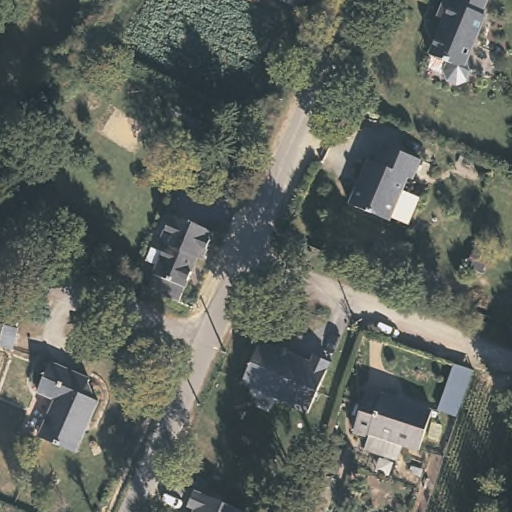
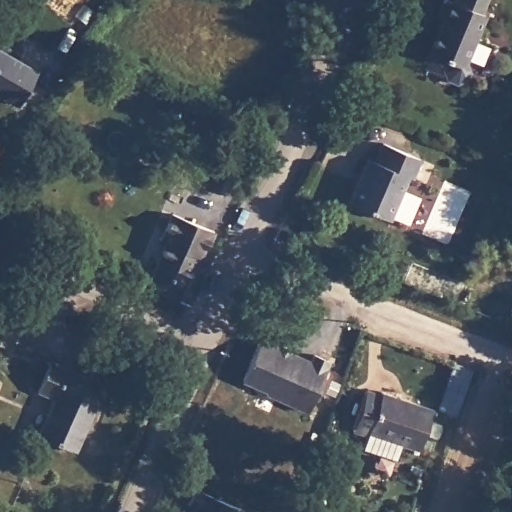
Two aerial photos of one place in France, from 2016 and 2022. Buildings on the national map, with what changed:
unchanged [(277,0),(303,0),(299,10),(277,0)]
unchanged [(486,18),(466,64),(471,71),(467,81),(458,85),(449,81),(444,73),(448,64),(429,56),(444,21),(437,18),(445,1),(455,5),(458,0),(489,0),(482,16),(486,18)]
new [(38,70),(17,105),(0,95),(0,49),(38,70)]
unchanged [(417,156),(410,176),(406,174),(389,218),(348,203),(365,158),(372,160),(380,141),(417,156)]
unchanged [(212,232),(200,260),(194,258),(175,302),(143,289),(163,245),(156,242),(169,214),(212,232)]
unchanged [(16,325),(11,345),(0,342),(0,321),(16,325)]
unchanged [(275,347),(276,345),(311,360),(314,352),(328,358),(325,366),(326,367),(308,410),(266,392),(267,389),(242,379),(259,340),(275,347)]
unchanged [(91,375),(89,379),(95,393),(99,395),(71,450),(37,433),(56,397),(38,387),(55,356),(91,375)]
unchanged [(377,398),(379,394),(429,409),(416,448),(367,433),(366,437),(350,431),(362,392),(377,398)]
unchanged [(206,495),(207,494),(248,512),(199,512),(200,510),(192,506),(198,492),(206,495)]

